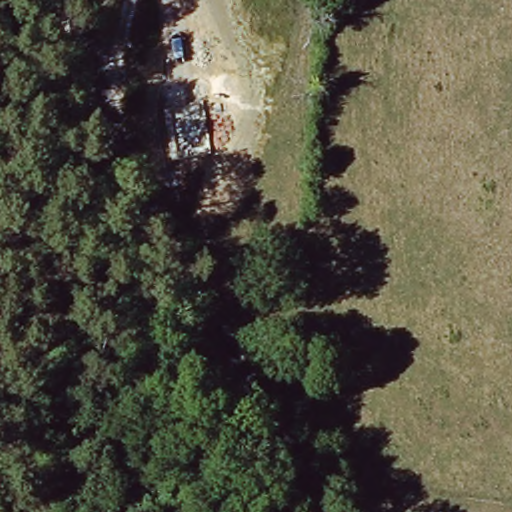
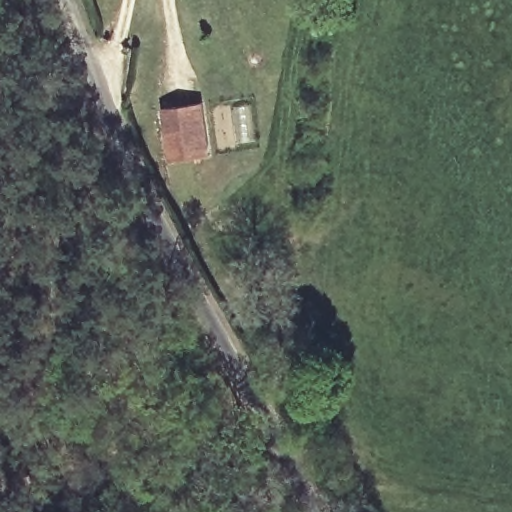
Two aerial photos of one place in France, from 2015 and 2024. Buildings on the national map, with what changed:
new [(204,103),(212,155),(169,161),(160,110),(204,103)]

